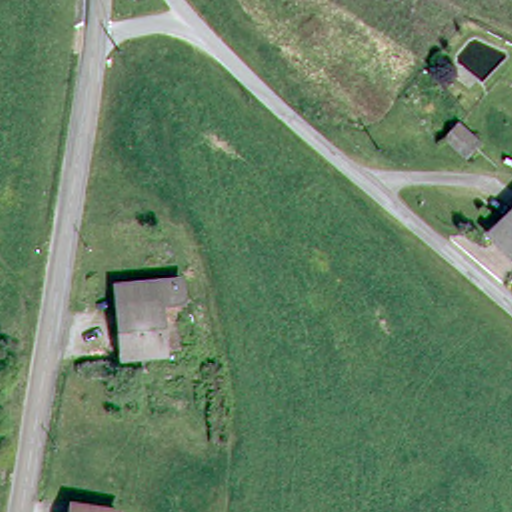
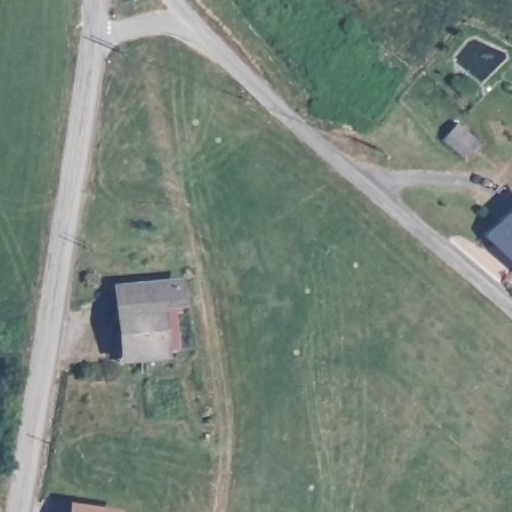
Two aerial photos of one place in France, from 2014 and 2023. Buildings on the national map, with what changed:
unchanged [(512,226),(512,260),(495,244),(512,226)]
unchanged [(167,304),(169,350),(132,352),(127,283),(179,279),(181,303),(167,304)]
unchanged [(78,510),(88,512),(78,512),(78,510)]

